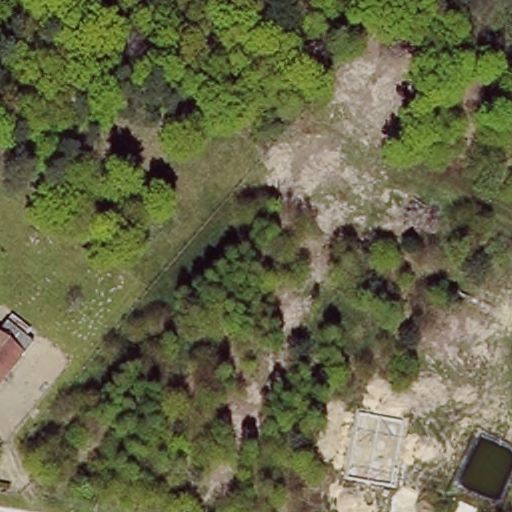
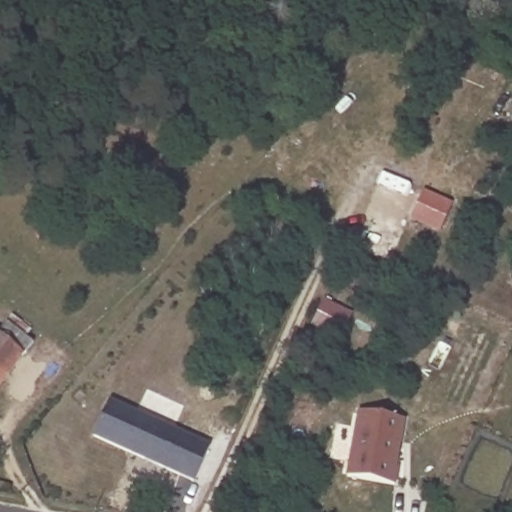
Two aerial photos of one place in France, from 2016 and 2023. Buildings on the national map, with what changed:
new [(425,189),(467,207),(455,237),(413,219),(425,189)]
new [(325,300),(353,312),(342,339),(312,326),(325,300)]
unchanged [(17,314),(37,331),(35,335),(30,341),(37,347),(26,360),(0,392),(0,335),(15,317),(17,314)]
new [(108,401),(209,447),(193,482),(92,437),(108,401)]
new [(358,411),(406,420),(397,466),(402,467),(398,486),(347,476),(358,411)]

